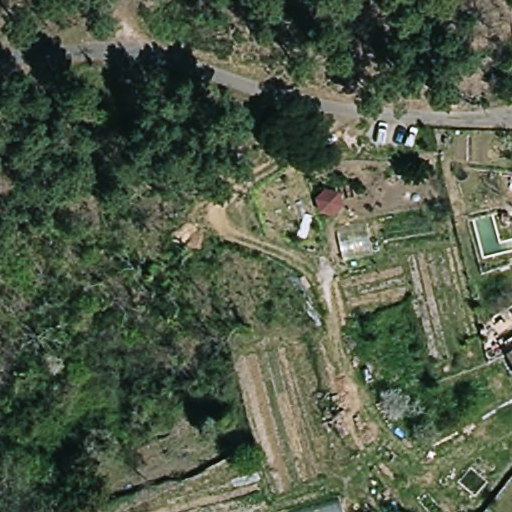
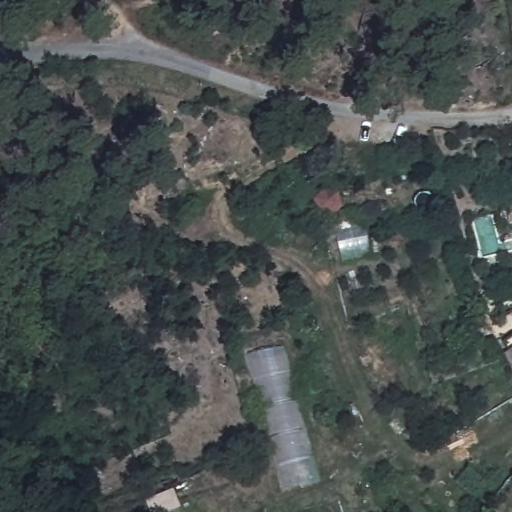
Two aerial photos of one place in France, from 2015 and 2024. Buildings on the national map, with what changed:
new [(282,490),(248,355),(286,345),(320,481),(282,490)]
unchanged [(512,349),(512,372),(502,355),(512,349)]
new [(181,502),(156,512),(155,512),(148,494),(174,485),(181,502)]

